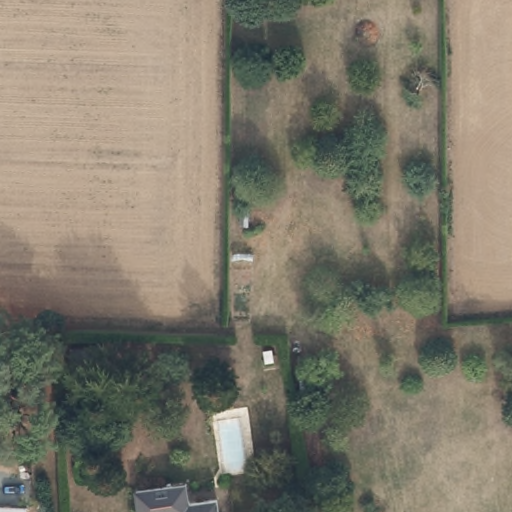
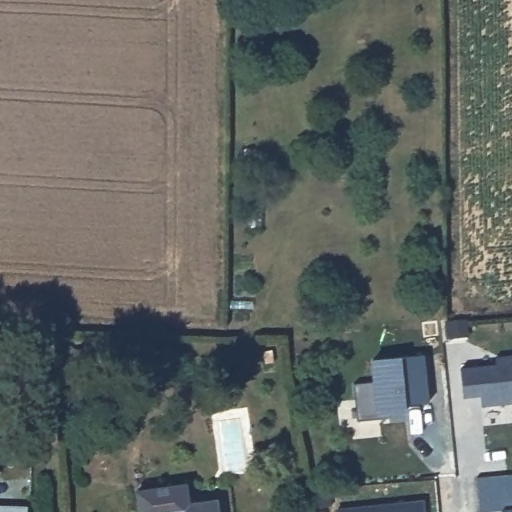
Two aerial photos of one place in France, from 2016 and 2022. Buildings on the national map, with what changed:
new [(374,379),(371,358),(402,355),(402,356),(424,354),(428,400),(407,403),(407,411),(385,413),(386,417),(357,419),(353,383),(374,379)]
new [(496,363),(495,356),(512,355),(512,403),(481,406),(479,396),(463,397),(460,368),(496,363)]
new [(502,512),(501,508),(477,511),(475,475),(512,473),(512,512),(502,512)]
unchanged [(142,511),(140,487),(181,484),(191,483),(192,503),(218,501),(219,512),(159,512),(158,510),(142,511)]
new [(425,512),(335,512),(334,507),(423,499),(425,512)]

